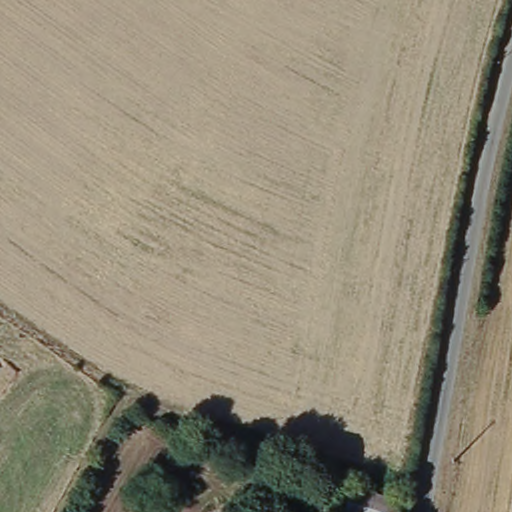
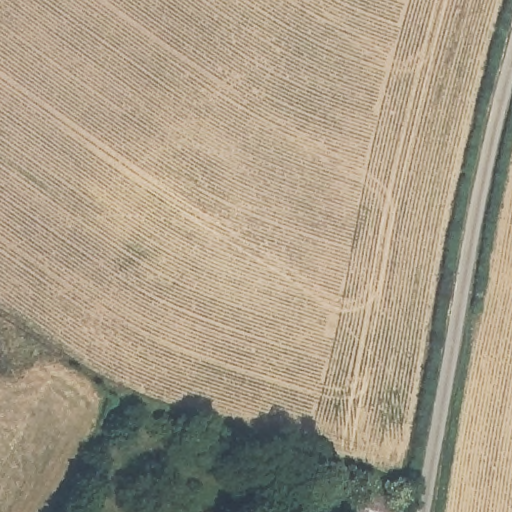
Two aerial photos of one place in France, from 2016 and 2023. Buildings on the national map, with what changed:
unchanged [(394,512),(343,512),(347,495),(395,508),(394,512)]

